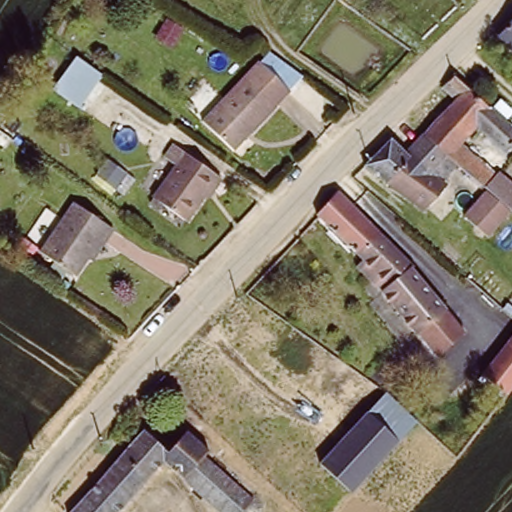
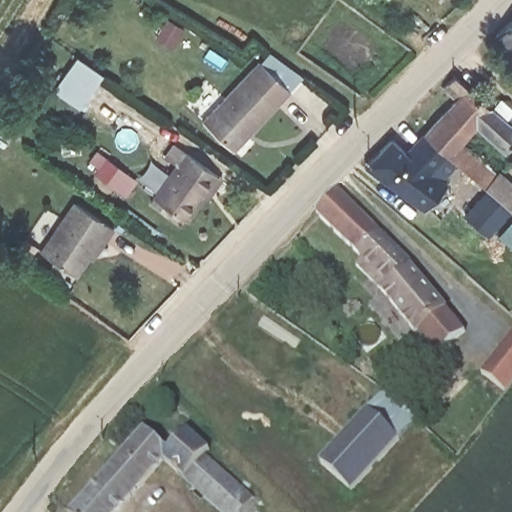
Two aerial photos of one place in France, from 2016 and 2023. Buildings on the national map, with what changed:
unchanged [(512,20),(512,46),(499,33),(512,20)]
unchanged [(102,67),(81,101),(56,86),(78,51),(102,67)]
unchanged [(202,115),(272,51),(304,77),(236,151),(202,115)]
unchanged [(394,135),(409,152),(451,100),(441,82),(461,69),(495,107),(505,94),(512,99),(512,149),(507,154),(473,122),(459,139),(512,179),(512,217),(508,212),(482,237),(463,210),(483,192),(456,174),(426,210),(367,164),(394,135)]
unchanged [(188,154),(219,176),(188,218),(157,196),(188,154)]
unchanged [(459,324),(437,353),(356,262),(363,252),(321,206),(346,180),(439,299),(459,324)]
unchanged [(81,207),(116,235),(106,248),(103,246),(77,277),(45,252),(81,207)]
unchanged [(504,398),(479,372),(512,330),(512,388),(504,398)]
unchanged [(318,467),(368,413),(381,398),(417,426),(402,443),(352,498),(318,467)]
unchanged [(146,430),(170,451),(187,432),(208,451),(204,455),(252,497),(238,512),(212,512),(160,466),(119,512),(73,512),(146,430)]

